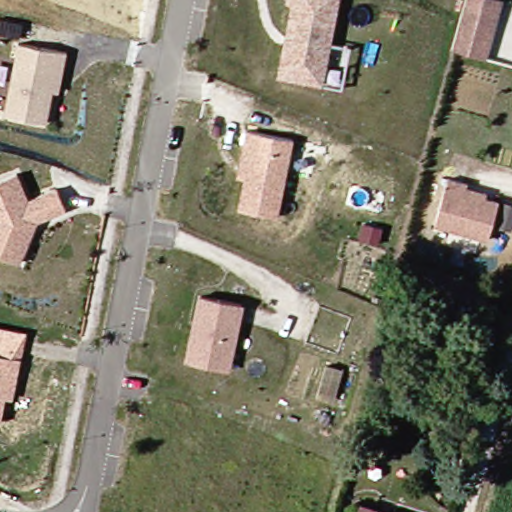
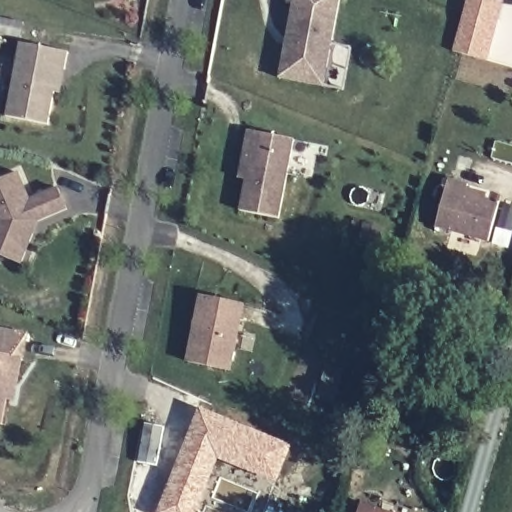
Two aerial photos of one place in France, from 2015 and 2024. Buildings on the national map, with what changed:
unchanged [(292,6),(287,5),(288,0),(341,0),(330,47),(321,89),(277,80),(284,48),(285,40),(292,6)]
unchanged [(472,12),(475,3),(476,0),(489,0),(509,5),(505,21),(493,62),(460,54),(471,16),(472,12)]
unchanged [(9,115),(24,42),(71,52),(68,70),(64,91),(57,90),(50,124),(9,115)]
unchanged [(252,171),(246,162),(252,131),(299,140),(283,219),(244,211),(252,171)]
unchanged [(20,265),(0,256),(0,180),(17,173),(30,201),(59,189),(67,210),(37,222),(32,235),(20,265)]
unchanged [(491,241),(438,226),(451,177),(471,182),(470,187),(490,192),(489,198),(502,201),(491,241)]
unchanged [(243,305),(230,372),(188,363),(201,296),(243,305)]
unchanged [(8,399),(4,423),(0,423),(0,329),(28,335),(19,381),(15,400),(8,399)]
unchanged [(346,370),(336,402),(318,396),(327,365),(346,370)]
new [(219,460),(197,512),(158,512),(198,407),(293,447),(276,485),(219,460)]
unchanged [(355,512),(358,504),(382,512),(355,512)]

